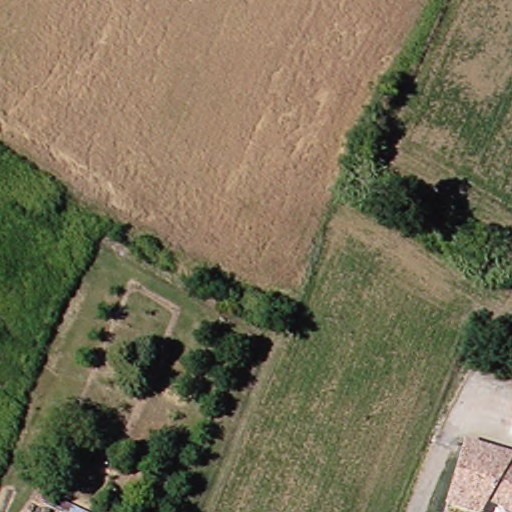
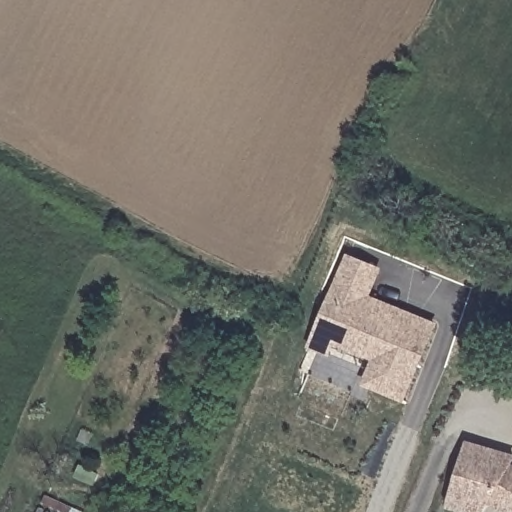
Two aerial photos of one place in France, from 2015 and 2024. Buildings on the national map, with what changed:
new [(438,324),(405,403),(362,385),(370,361),(335,346),(330,357),(307,348),(346,253),(381,268),(369,296),(438,324)]
unchanged [(450,493),(464,444),(511,458),(507,466),(512,468),(512,512),(502,512),(485,503),(481,512),(460,512),(446,508),(450,493)]

